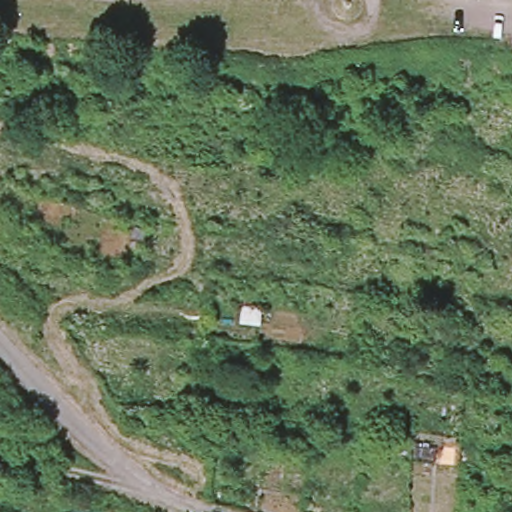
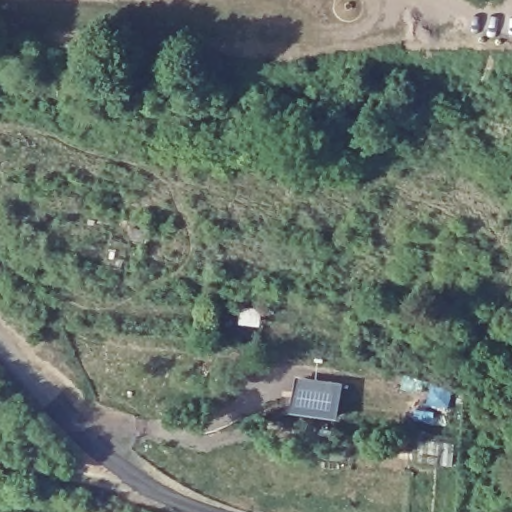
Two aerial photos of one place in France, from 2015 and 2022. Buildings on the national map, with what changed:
new [(342,385),(337,422),(289,415),(295,377),(342,385)]

